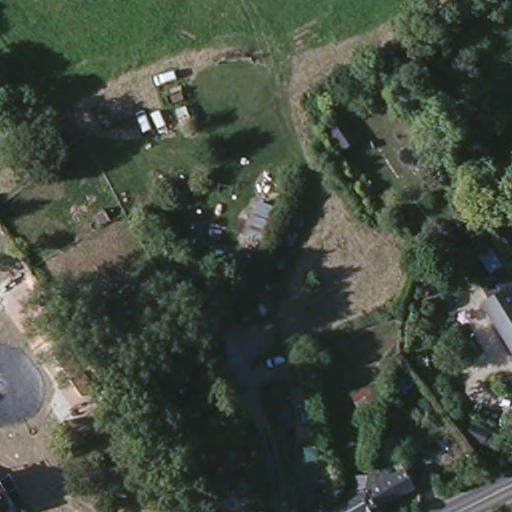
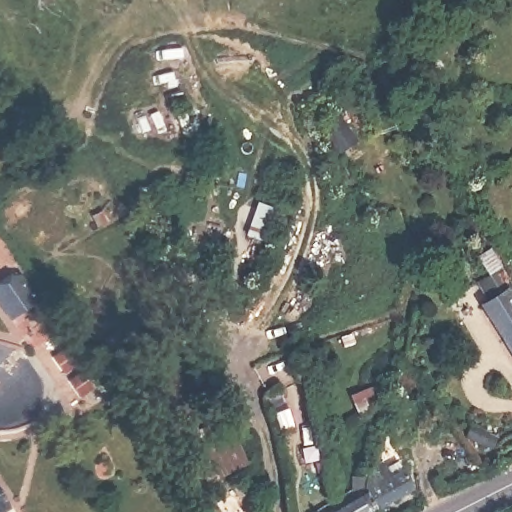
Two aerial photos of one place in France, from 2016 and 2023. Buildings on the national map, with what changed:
new [(21,273),(37,305),(11,319),(0,299),(0,286),(21,273)]
unchanged [(512,291),(512,335),(492,303),(512,291)]
unchanged [(210,410),(218,429),(240,422),(258,458),(216,481),(192,423),(210,410)]
unchanged [(338,498),(364,483),(377,454),(389,456),(395,464),(401,459),(406,454),(421,482),(420,483),(376,508),(369,512),(312,512),(334,500),(338,498)]
unchanged [(7,508),(0,512),(0,496),(7,508)]

